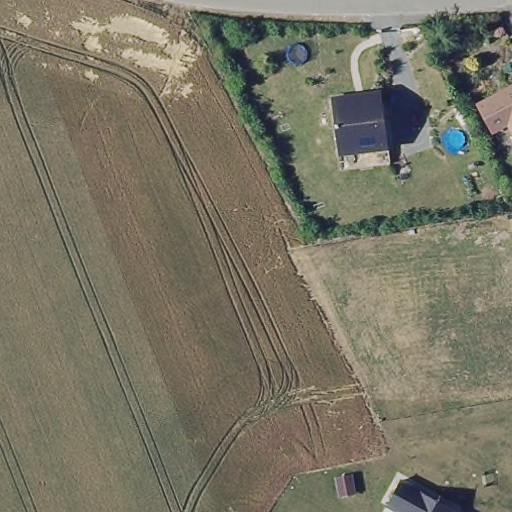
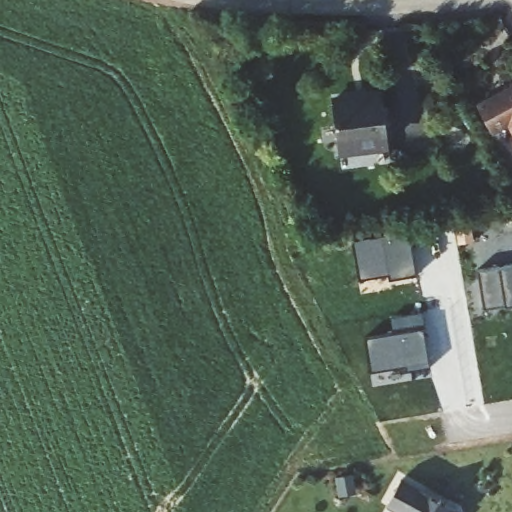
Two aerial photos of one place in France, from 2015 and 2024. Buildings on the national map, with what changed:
unchanged [(507,125),(491,133),(477,106),(512,86),(512,133),(507,125)]
unchanged [(387,145),(390,165),(341,171),(338,151),(332,102),(356,99),(356,101),(382,98),(387,145)]
new [(357,280),(354,240),(410,234),(415,274),(357,280)]
new [(477,271),(512,264),(512,304),(484,310),(477,271)]
new [(397,325),(420,320),(429,363),(372,374),(366,340),(392,335),(397,325)]
unchanged [(452,512),(394,512),(390,510),(384,506),(386,502),(397,482),(440,505),(452,512)]

